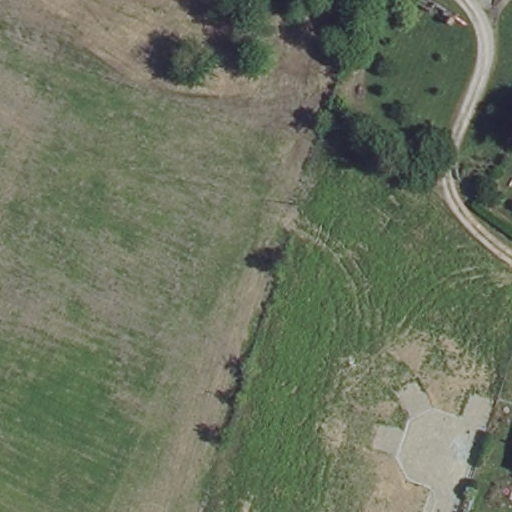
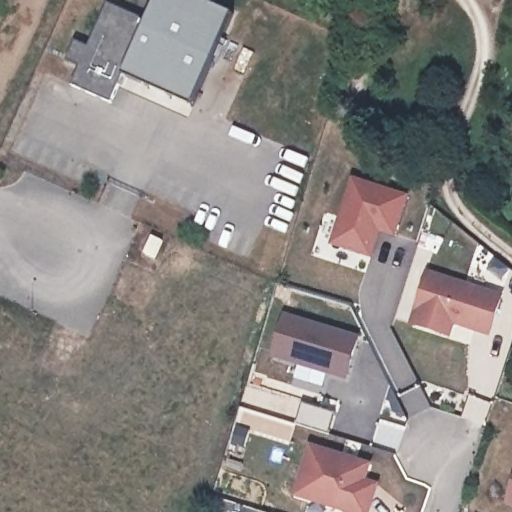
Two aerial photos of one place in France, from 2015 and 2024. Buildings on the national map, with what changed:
new [(80,65),(67,60),(75,41),(89,47),(108,3),(147,22),(157,0),(203,0),(235,14),(194,107),(124,75),(113,102),(71,85),(80,65)]
new [(372,260),(329,246),(352,177),(411,196),(396,240),(380,235),(372,260)]
new [(500,295),(489,332),(455,320),(452,336),(430,330),(432,324),(410,316),(427,269),(500,295)]
new [(357,336),(347,377),(269,354),(283,312),(357,336)]
new [(364,481),(380,486),(371,512),(354,512),(294,492),(312,441),(369,461),(364,481)]
new [(512,484),(512,500),(507,498),(512,484)]

